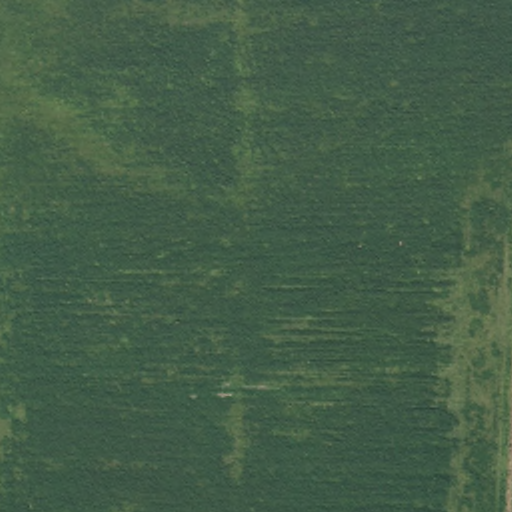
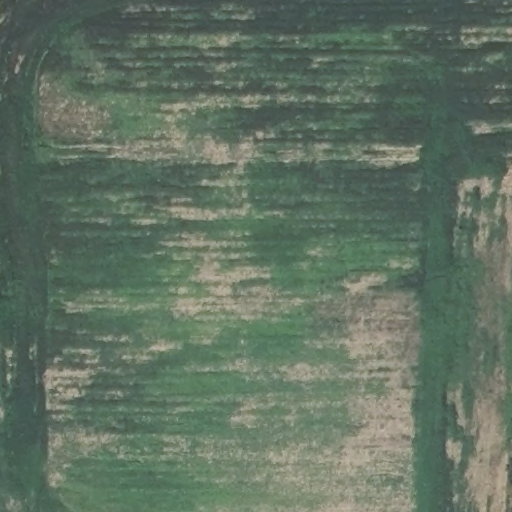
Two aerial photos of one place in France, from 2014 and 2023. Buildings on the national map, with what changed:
[]

